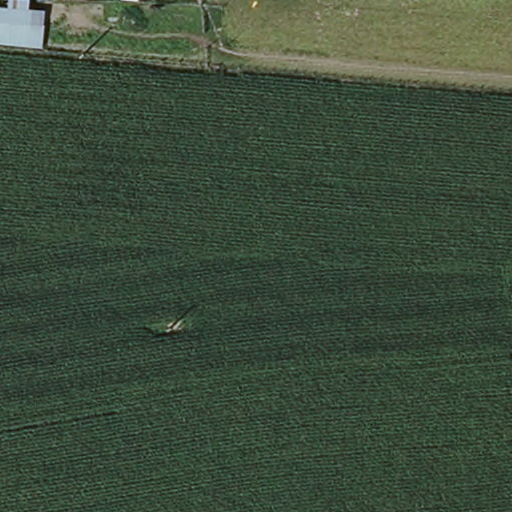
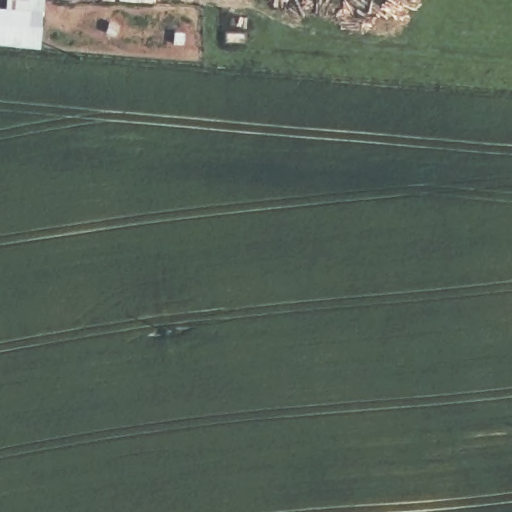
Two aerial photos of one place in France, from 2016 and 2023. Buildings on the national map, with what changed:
unchanged [(7,4),(6,16),(47,19),(46,44),(0,40),(0,4),(7,4)]

